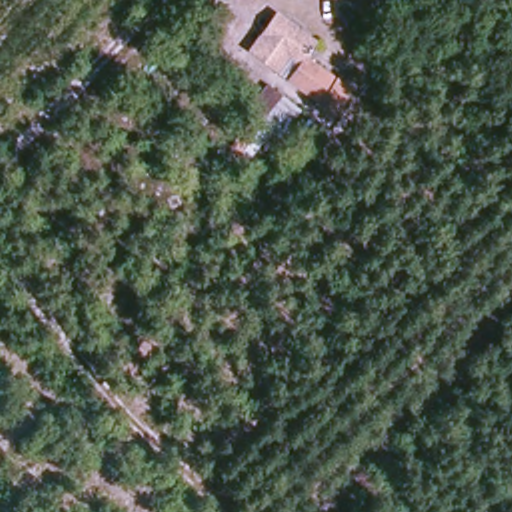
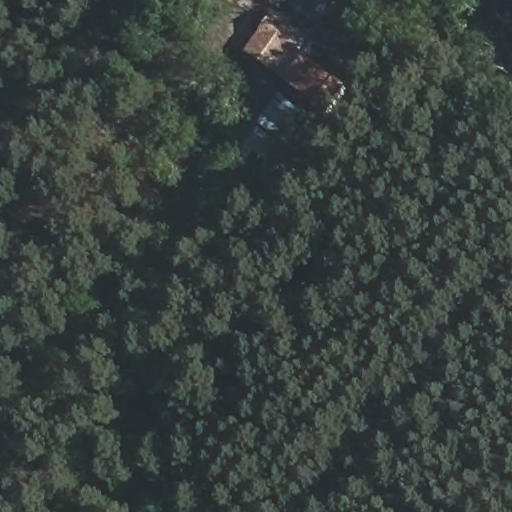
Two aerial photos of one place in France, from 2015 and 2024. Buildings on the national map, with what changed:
unchanged [(307,57),(354,84),(337,113),(323,104),(325,101),(292,81),(296,75),(281,65),(271,74),(241,53),(267,11),(315,40),(307,57)]
unchanged [(300,111),(283,130),(253,108),(267,83),(300,111)]

